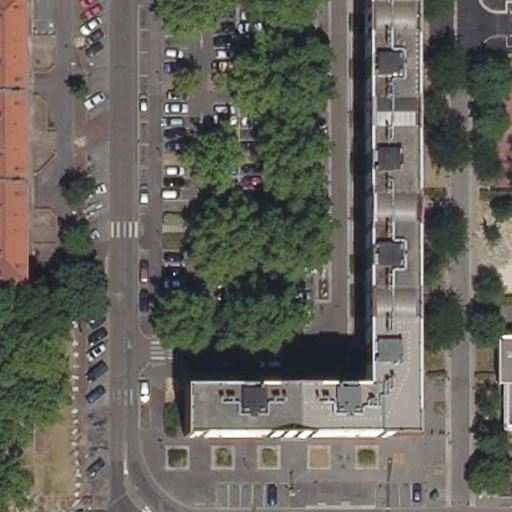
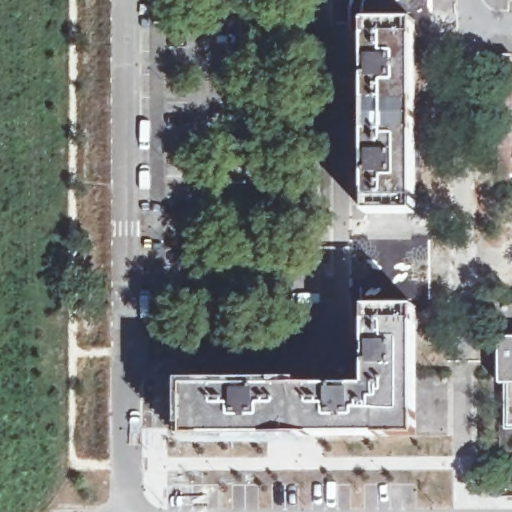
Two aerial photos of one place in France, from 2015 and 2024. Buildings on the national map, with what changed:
demolished [(24,12),(24,34),(24,49),(24,75),(24,88),(24,133),(24,144),(24,189),(24,202),(24,227),(24,239),(24,264),(21,264),(21,277),(24,277),(24,284),(0,284),(0,0),(21,0),(21,13),(24,12)]
unchanged [(259,376),(259,381),(259,384),(259,387),(269,387),(324,387),(323,384),(323,382),(323,375),(324,375),(343,375),(344,375),(344,382),(344,383),(344,387),(369,387),(369,382),(369,366),(361,366),(356,366),(356,365),(356,346),(356,345),(361,345),(369,345),(368,270),(361,270),(356,270),(356,251),(356,250),(361,250),(368,250),(368,240),(368,186),(368,175),(361,175),(356,175),(356,174),(356,156),(356,155),(361,155),(368,155),(368,80),(361,80),(356,80),(356,79),(356,60),(356,59),(361,59),(368,59),(367,0),(416,0),(417,185),(417,382),(417,434),(417,435),(378,435),(378,431),(323,432),(269,432),(188,432),(187,432),(188,387),(238,387),(238,385),(238,381),(238,376),(240,376),(258,376),(259,376)]
unchanged [(508,383),(500,383),(500,337),(512,337),(512,427),(509,427),(508,383)]

